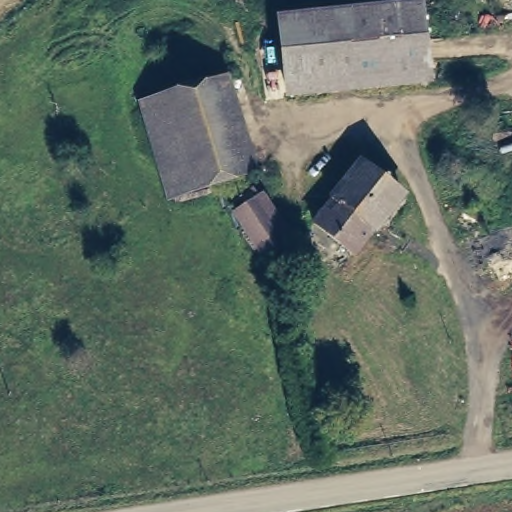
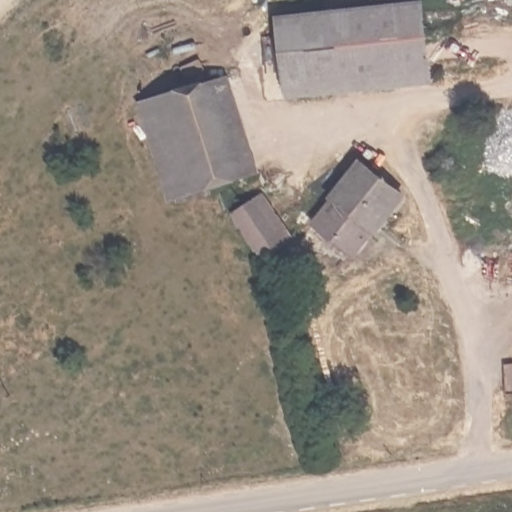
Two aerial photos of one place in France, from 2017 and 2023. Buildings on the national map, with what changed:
unchanged [(420,0),(425,0),(430,85),(284,95),(274,16),(420,0)]
unchanged [(260,178),(167,206),(138,101),(233,71),(260,178)]
unchanged [(360,158),(409,198),(334,282),(303,236),(360,158)]
unchanged [(293,241),(260,261),(228,216),(262,192),(293,241)]

